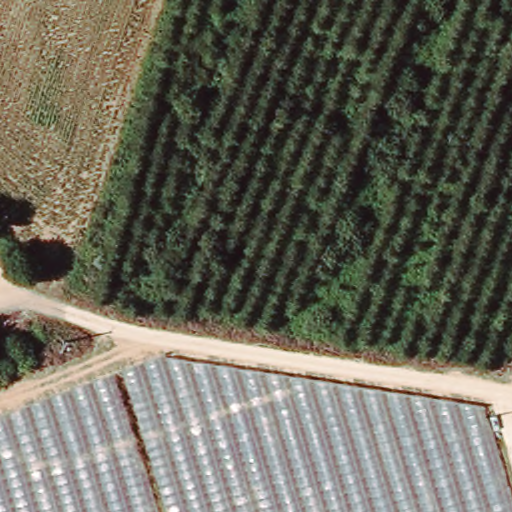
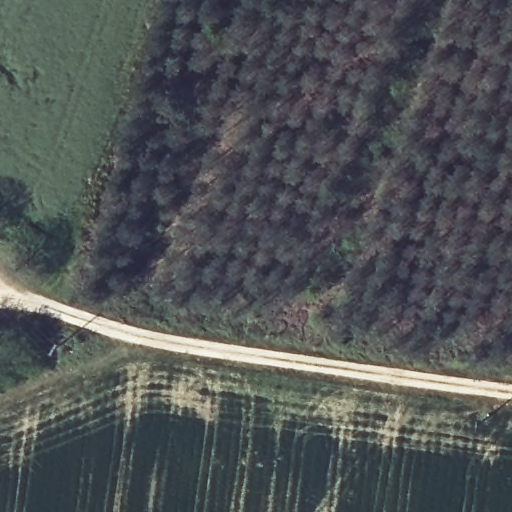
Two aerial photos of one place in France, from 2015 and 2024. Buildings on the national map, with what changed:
demolished [(143,360),(482,410),(512,511),(512,512),(171,512),(126,370),(143,360)]
demolished [(0,419),(115,373),(155,512),(0,512),(0,419)]

